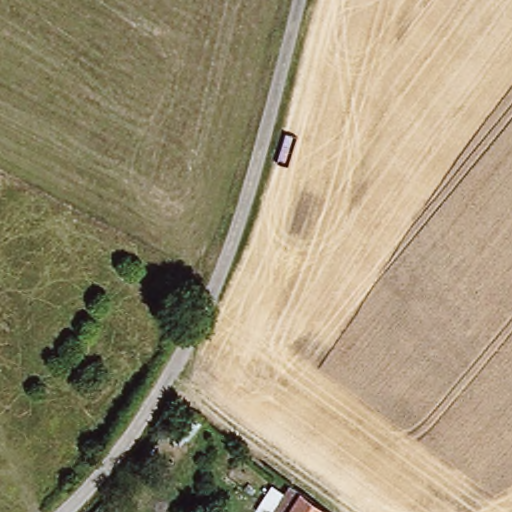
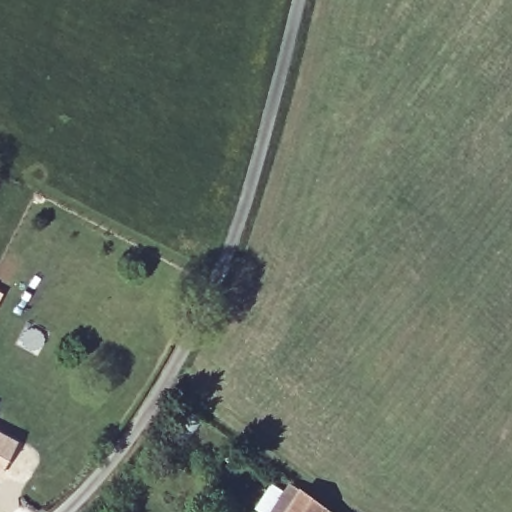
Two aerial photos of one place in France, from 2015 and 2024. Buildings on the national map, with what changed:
new [(0,476),(0,434),(17,443),(0,476)]
unchanged [(333,512),(291,512),(310,486),(337,506),(333,512)]

